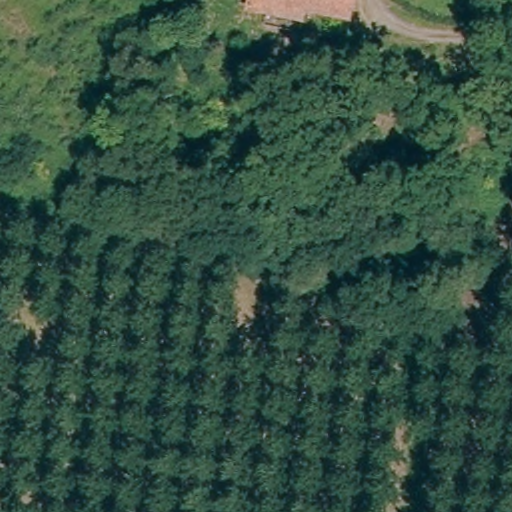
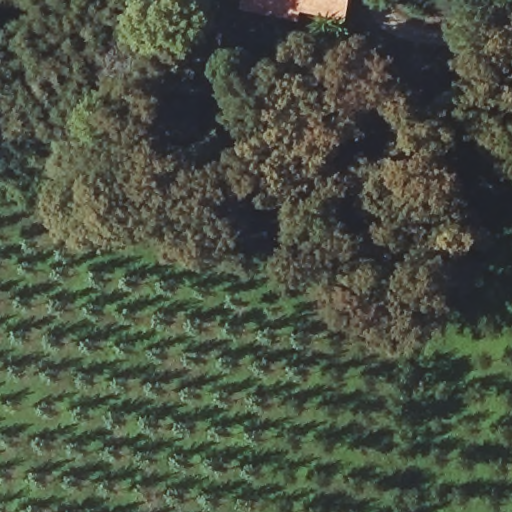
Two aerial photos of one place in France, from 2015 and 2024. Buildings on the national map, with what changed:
unchanged [(350,22),(302,12),(300,22),(248,11),(250,0),(355,0),(350,22)]

